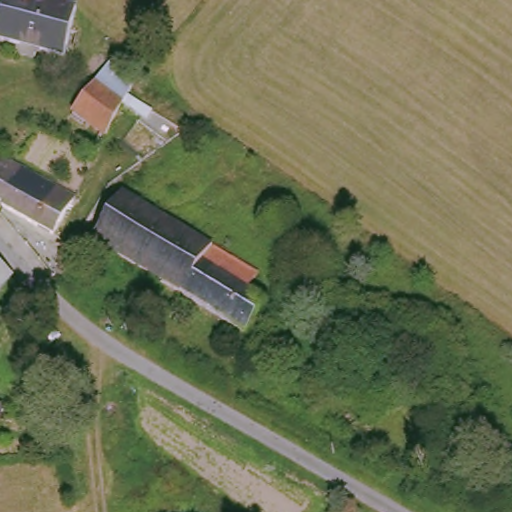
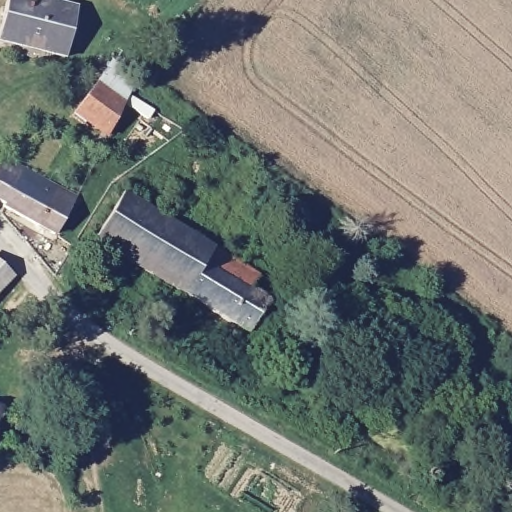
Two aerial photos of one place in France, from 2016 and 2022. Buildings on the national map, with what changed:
unchanged [(67,61),(2,44),(13,0),(35,0),(80,12),(67,61)]
unchanged [(78,118),(96,90),(113,66),(135,81),(120,104),(111,140),(78,118)]
unchanged [(52,230),(5,204),(7,200),(0,196),(0,156),(74,194),(52,230)]
unchanged [(255,270),(250,279),(265,287),(261,294),(264,296),(245,327),(94,235),(121,188),(255,270)]
unchanged [(0,282),(0,263),(9,272),(0,282)]

